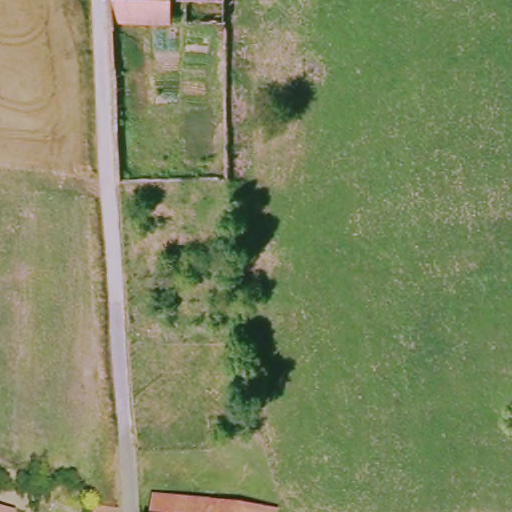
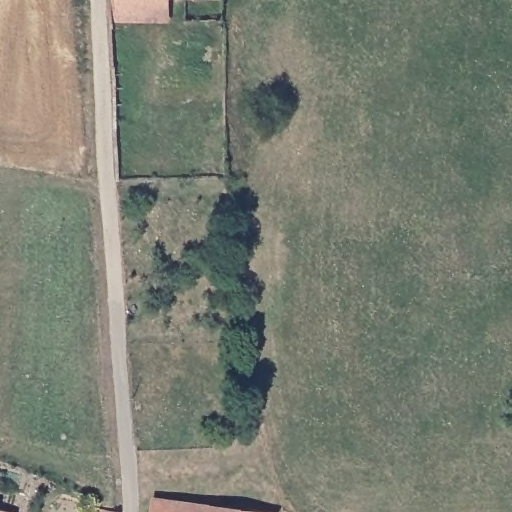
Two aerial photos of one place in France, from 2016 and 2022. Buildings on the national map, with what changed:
unchanged [(106,0),(163,0),(163,21),(106,21),(106,0)]
unchanged [(146,505),(145,497),(251,512),(145,512),(146,505)]
unchanged [(0,510),(5,512),(0,512),(0,510)]

